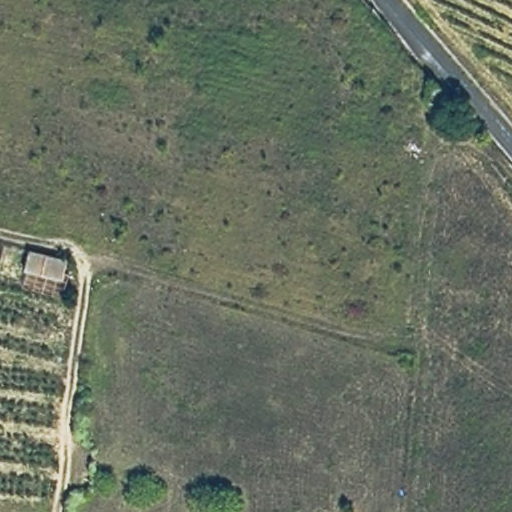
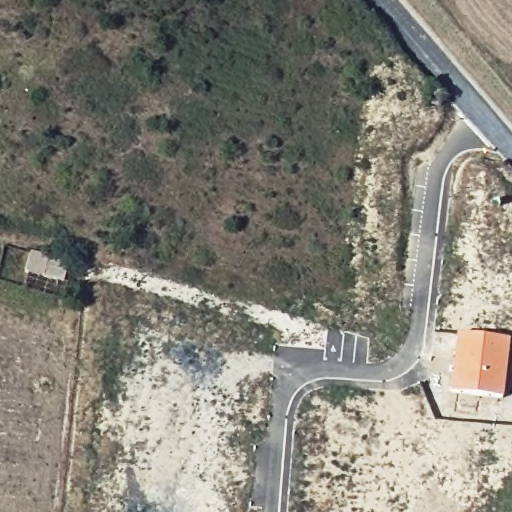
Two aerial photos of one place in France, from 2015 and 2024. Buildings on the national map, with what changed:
unchanged [(27,250),(66,257),(62,282),(23,273),(27,250)]
new [(457,334),(510,340),(504,397),(450,391),(457,334)]

